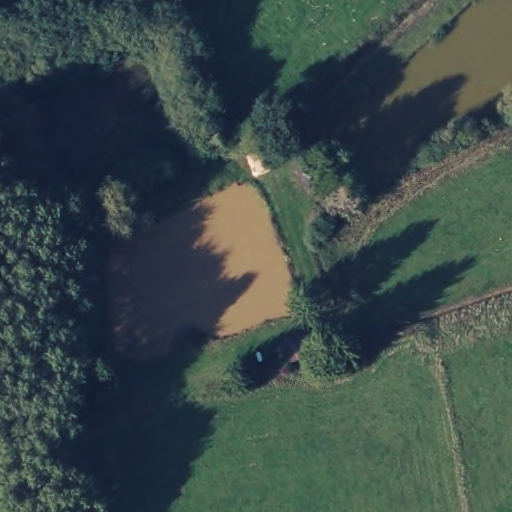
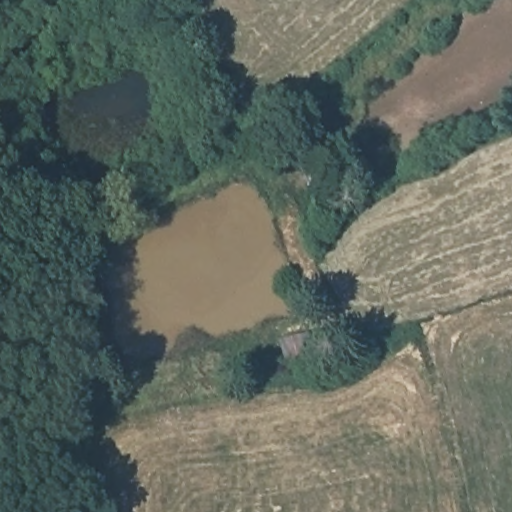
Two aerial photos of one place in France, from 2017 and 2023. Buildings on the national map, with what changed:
unchanged [(277,342),(308,334),(315,355),(287,363),(277,342)]

